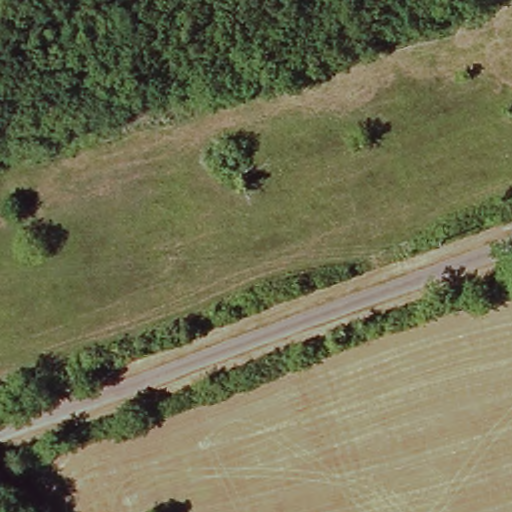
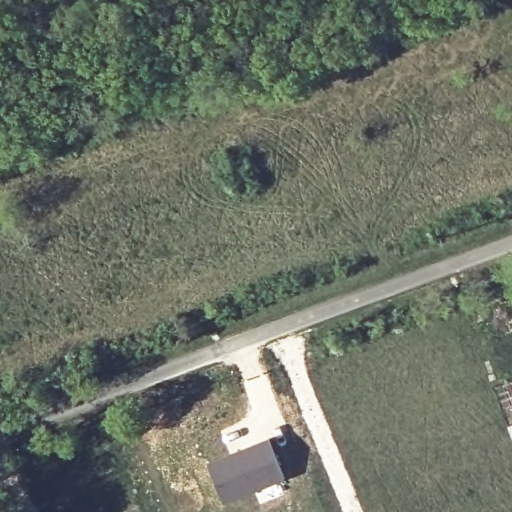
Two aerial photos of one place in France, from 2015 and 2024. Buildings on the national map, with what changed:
new [(268,438),(284,482),(222,506),(205,463),(268,438)]

